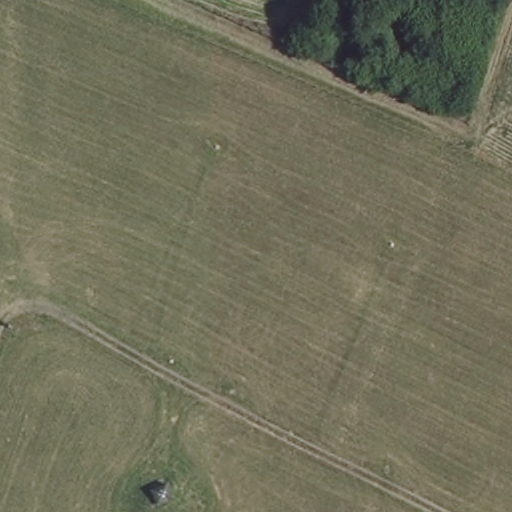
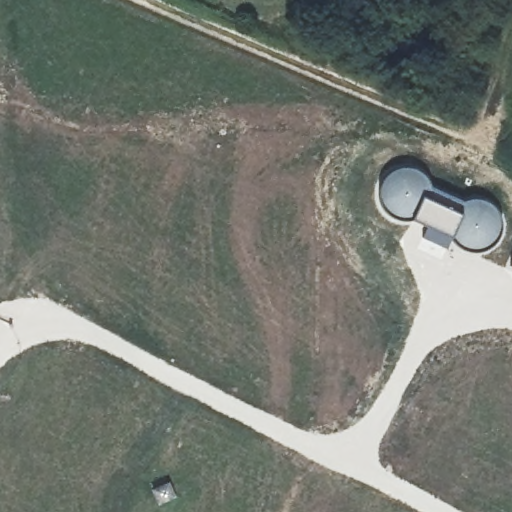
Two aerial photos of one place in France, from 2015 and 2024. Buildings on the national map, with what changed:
new [(380,180),(385,174),(391,169),(400,166),(408,166),(430,184),(429,185),(428,188),(425,187),(410,220),(381,209),(378,202),(377,195),(380,180)]
new [(425,187),(428,188),(429,185),(465,200),(452,239),(447,250),(420,239),(425,226),(410,220),(425,187)]
new [(465,200),(487,201),(494,206),(498,212),(501,220),(502,227),(500,236),(497,241),(493,245),(487,249),(480,250),(465,249),(452,239),(465,200)]
new [(512,262),(512,268),(510,267),(512,262)]

